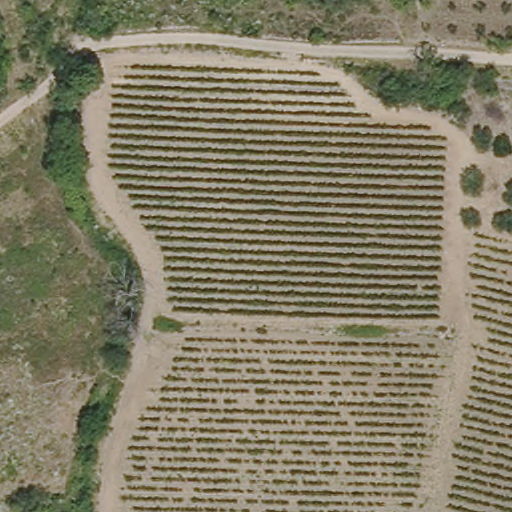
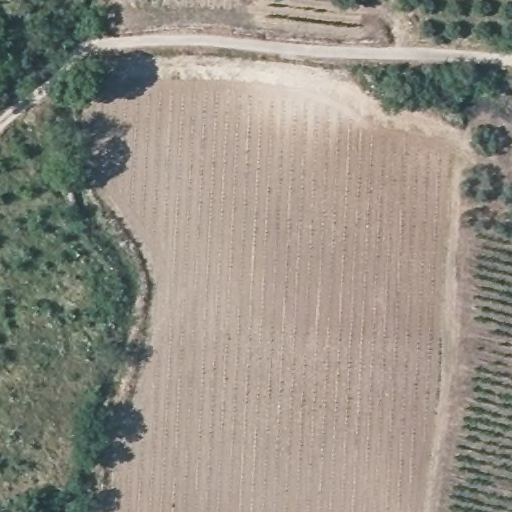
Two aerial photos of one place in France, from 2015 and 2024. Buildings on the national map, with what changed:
[]

